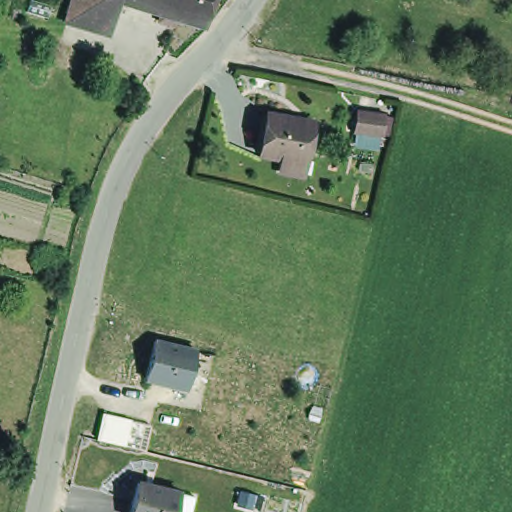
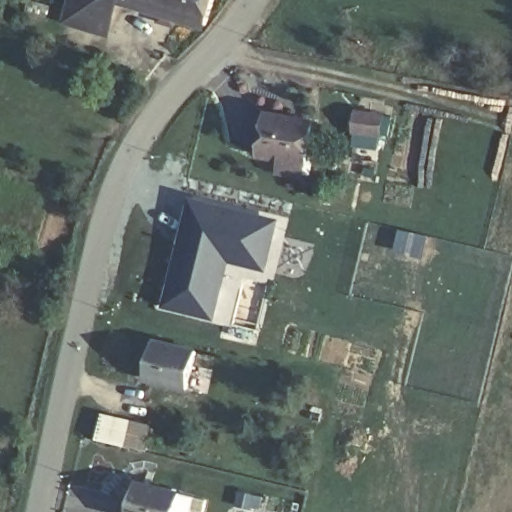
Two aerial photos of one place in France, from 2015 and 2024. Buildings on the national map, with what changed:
unchanged [(84,0),(122,0),(118,12),(112,28),(78,17),(84,1),(84,0)]
unchanged [(153,8),(124,0),(155,0),(153,8)]
unchanged [(162,11),(153,8),(155,0),(214,0),(207,23),(177,15),(175,23),(160,19),(162,11)]
unchanged [(358,112),(355,130),(331,126),(335,107),(358,112)]
unchanged [(286,123),(286,126),(310,131),(305,165),(261,156),(268,120),(286,123)]
new [(187,194),(280,217),(265,283),(241,278),(230,326),(157,308),(187,194)]
unchanged [(196,347),(188,388),(145,378),(153,338),(196,347)]
new [(95,439),(102,413),(151,424),(145,451),(95,439)]
unchanged [(176,512),(129,512),(138,478),(181,489),(176,512)]

